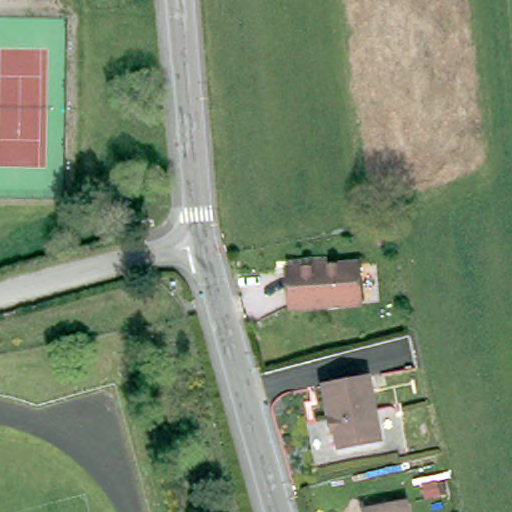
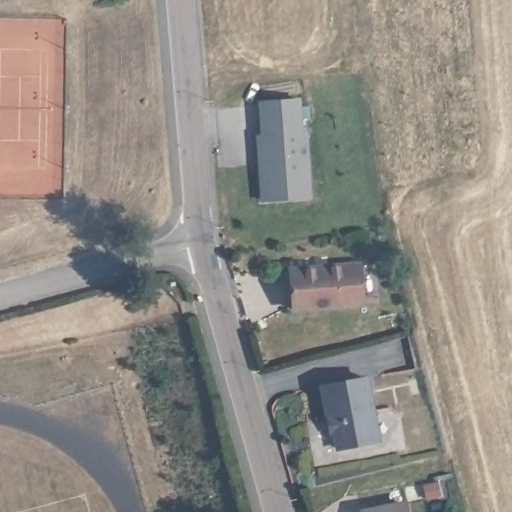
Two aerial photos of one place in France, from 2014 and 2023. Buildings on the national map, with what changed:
new [(260,135),(258,101),(301,98),(303,126),(308,125),(313,198),(261,201),(256,135),(260,135)]
unchanged [(294,269),(363,264),(367,302),(298,309),(294,269)]
unchanged [(334,417),(327,418),(322,386),(367,378),(379,440),(339,447),(334,417)]
unchanged [(365,511),(405,504),(407,512),(365,512),(365,511)]

